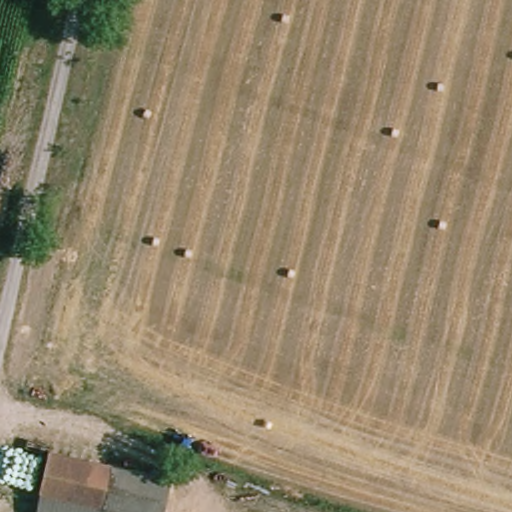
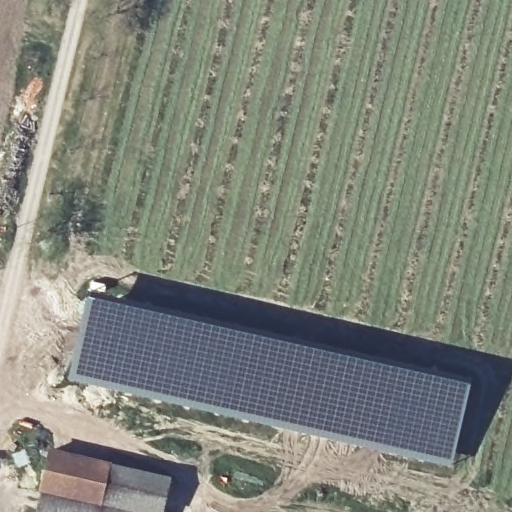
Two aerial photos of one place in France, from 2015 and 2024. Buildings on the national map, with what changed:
new [(87,293),(141,306),(472,381),(452,465),(300,433),(224,414),(65,379),(87,293)]
unchanged [(176,475),(166,512),(36,512),(50,447),(176,475)]

